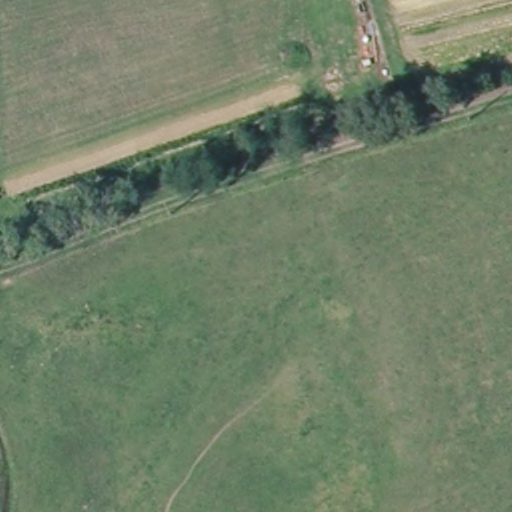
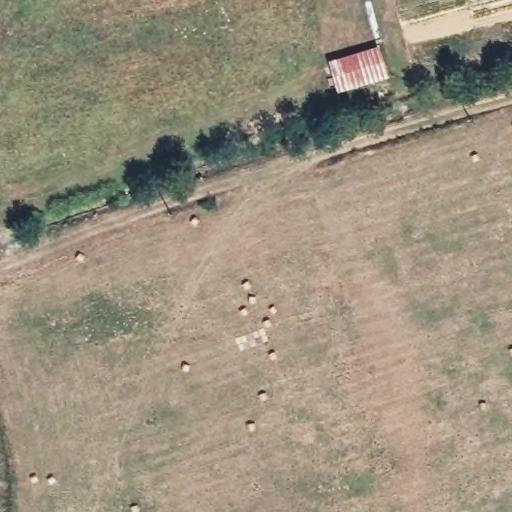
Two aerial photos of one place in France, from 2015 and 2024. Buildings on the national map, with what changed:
new [(378,46),(388,77),(338,92),(328,61),(378,46)]

